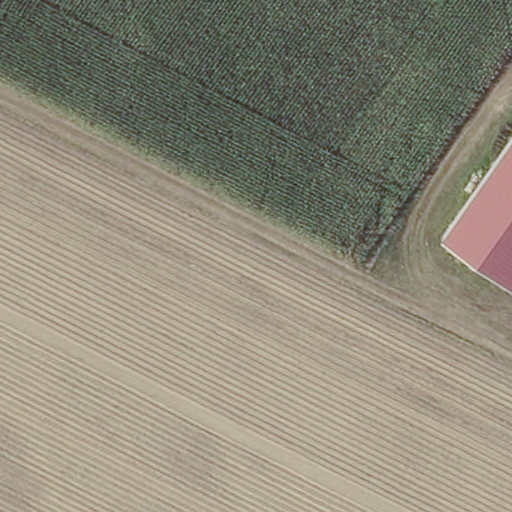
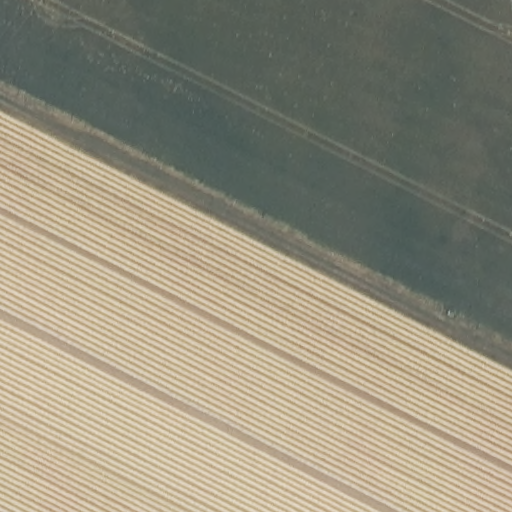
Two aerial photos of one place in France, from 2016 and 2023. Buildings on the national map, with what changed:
demolished [(439,239),(512,133),(512,294),(439,239)]

